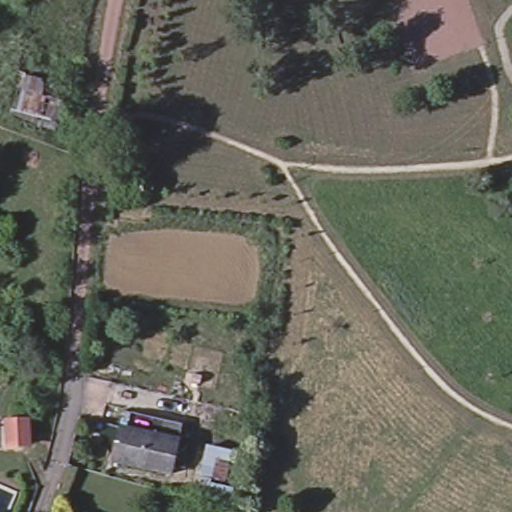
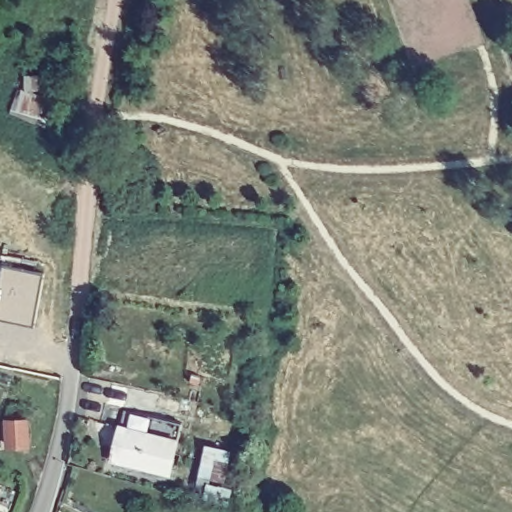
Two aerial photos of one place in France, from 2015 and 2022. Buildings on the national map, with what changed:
unchanged [(47,88),(44,101),(66,106),(59,132),(12,119),(22,81),(47,88)]
new [(0,286),(2,286),(5,265),(45,274),(36,325),(0,318),(0,286)]
unchanged [(33,424),(35,454),(5,457),(2,426),(33,424)]
unchanged [(179,443),(171,481),(118,469),(109,466),(117,429),(126,431),(179,443)]
unchanged [(226,508),(202,503),(214,454),(237,459),(226,508)]

